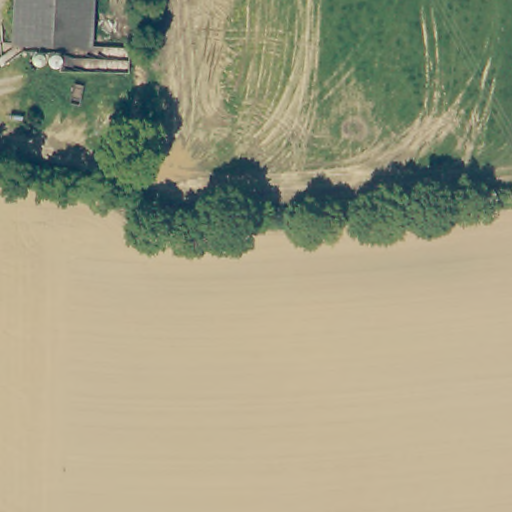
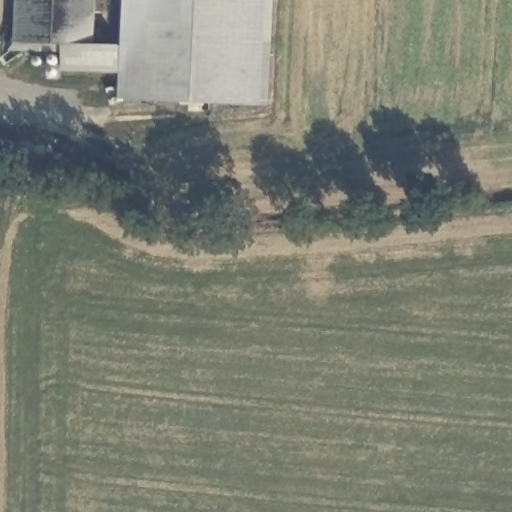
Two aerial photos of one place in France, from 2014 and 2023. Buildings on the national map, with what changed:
unchanged [(16,45),(18,0),(94,0),(91,47),(16,45)]
new [(91,47),(120,49),(122,0),(274,0),(269,106),(117,99),(119,74),(62,71),(63,46),(91,47)]

